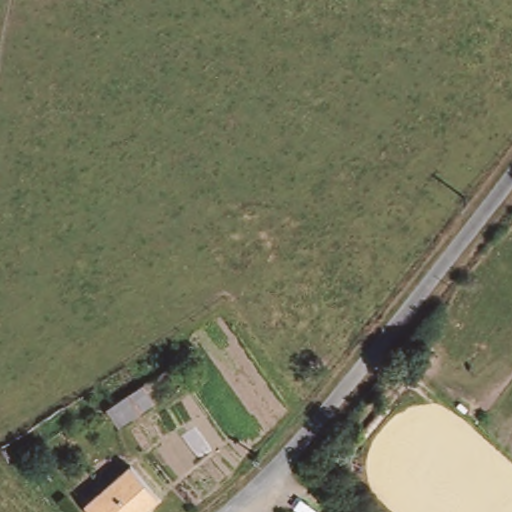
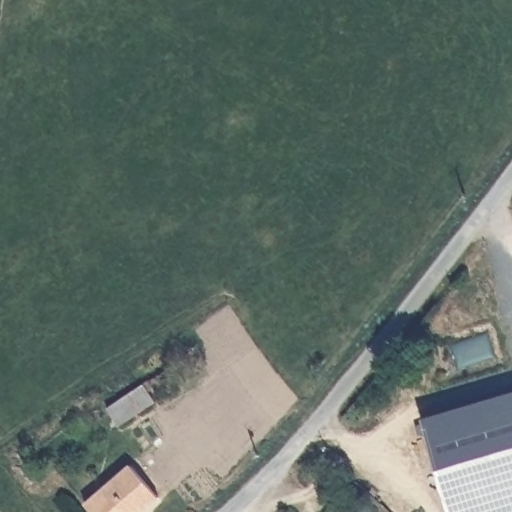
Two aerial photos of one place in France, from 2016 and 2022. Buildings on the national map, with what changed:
unchanged [(141,384),(154,403),(117,424),(106,406),(141,384)]
new [(512,393),(512,512),(449,512),(422,417),(512,393)]
unchanged [(164,495),(143,512),(101,512),(92,501),(137,465),(164,495)]

